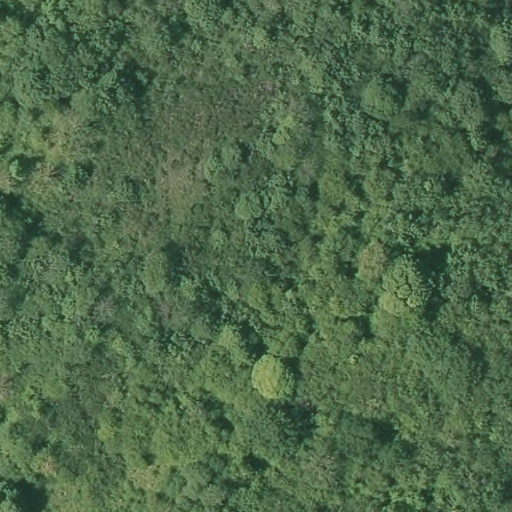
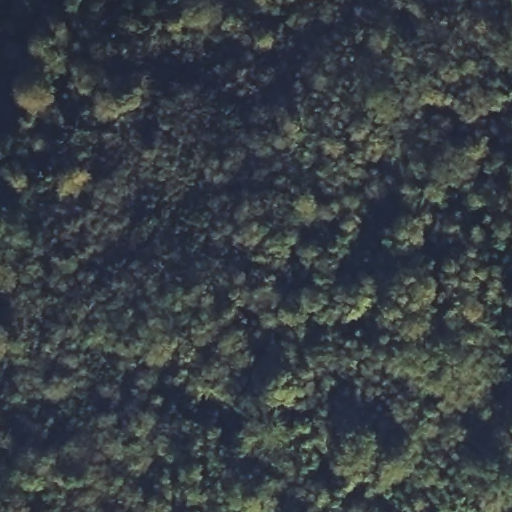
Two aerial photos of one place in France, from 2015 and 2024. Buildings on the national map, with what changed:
[]

